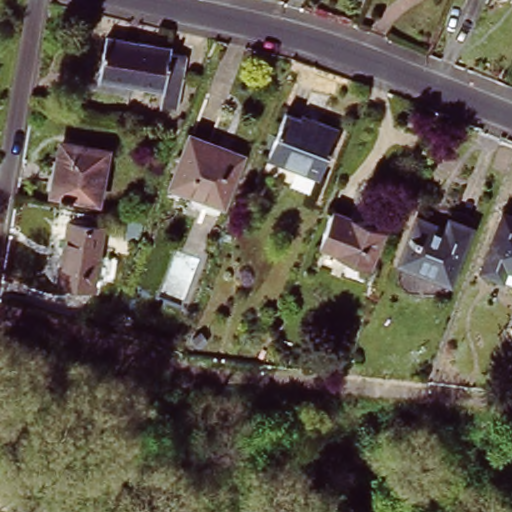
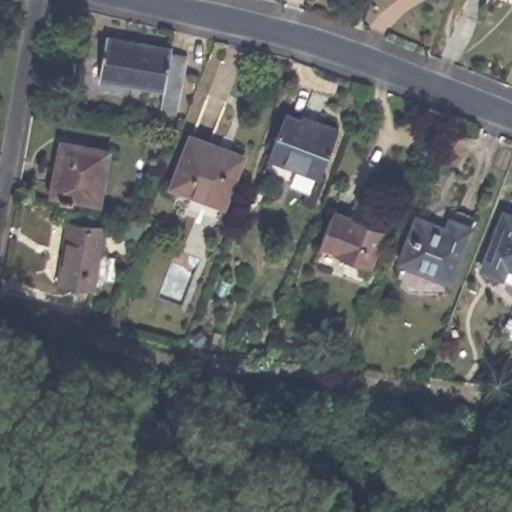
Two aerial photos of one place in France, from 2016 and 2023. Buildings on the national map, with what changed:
unchanged [(107,37),(172,49),(171,55),(187,58),(177,110),(161,106),(164,91),(99,80),(107,37)]
unchanged [(271,157),(288,111),(301,116),(302,114),(339,127),(321,176),(271,157)]
unchanged [(169,189),(192,131),(242,151),(225,196),(210,190),(208,195),(195,189),(191,197),(169,189)]
unchanged [(113,146),(104,196),(79,192),(78,197),(66,195),(66,191),(59,190),(69,140),(113,146)]
unchanged [(336,252),(337,250),(322,244),(336,209),(384,228),(369,265),(336,252)]
unchanged [(512,219),(512,270),(479,256),(496,212),(512,219)]
unchanged [(87,278),(50,272),(60,213),(97,219),(92,247),(109,250),(101,305),(84,302),(87,278)]
unchanged [(412,218),(439,229),(445,213),(468,222),(444,282),(393,263),(412,218)]

